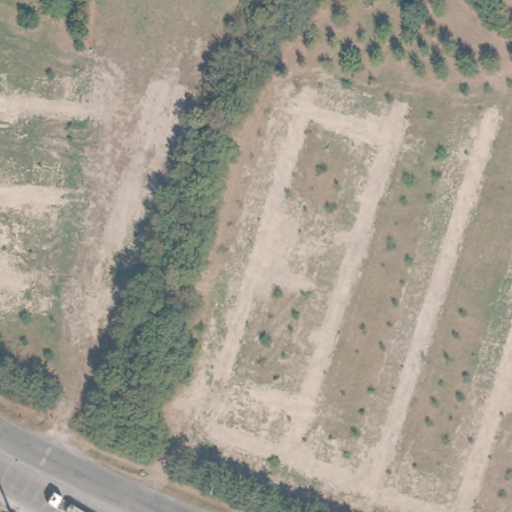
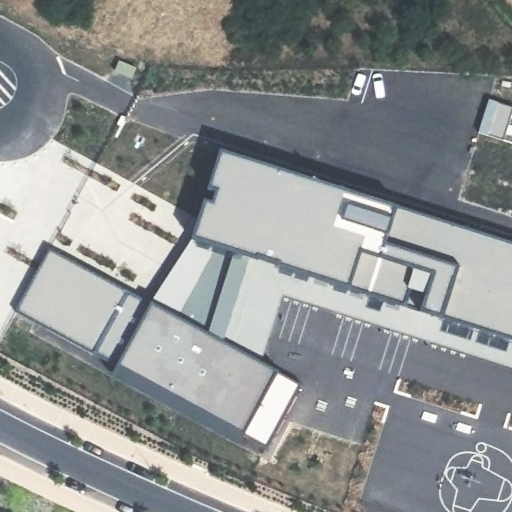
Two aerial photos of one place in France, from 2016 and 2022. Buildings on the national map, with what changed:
new [(423,314),(420,327),(378,314),(383,300),(257,258),(228,344),(279,374),(302,384),(266,448),(241,436),(237,443),(114,375),(117,368),(92,355),(127,291),(150,305),(172,317),(215,247),(192,240),(190,247),(185,237),(199,189),(206,190),(220,149),(512,242),(512,341),(423,314)]

